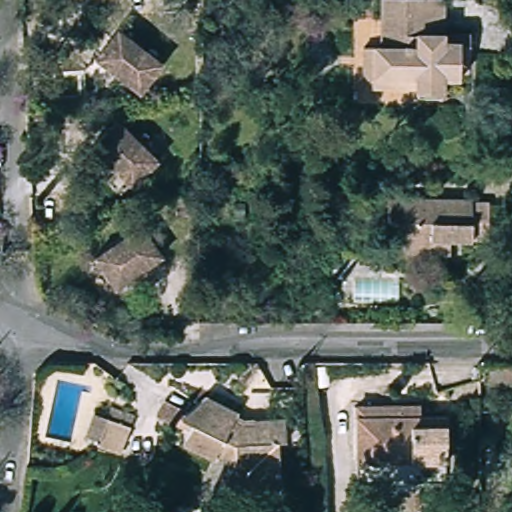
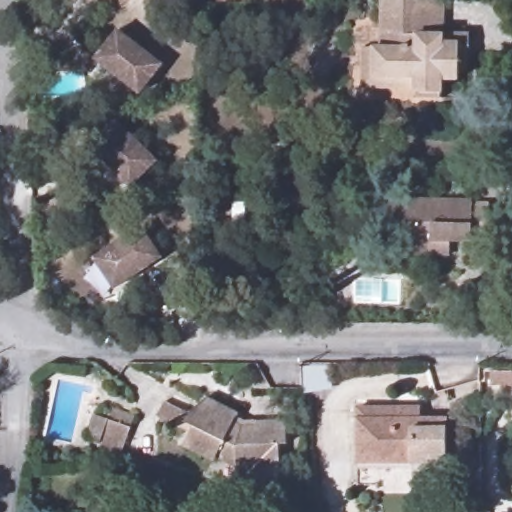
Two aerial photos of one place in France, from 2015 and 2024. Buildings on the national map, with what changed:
unchanged [(418,94),(365,91),(368,46),(379,47),(387,47),(389,0),(448,0),(448,33),(461,33),(475,34),(475,53),(475,70),(462,70),(462,80),(445,80),(444,94),(443,103),(417,101),(418,94)]
unchanged [(85,69),(117,28),(162,63),(138,93),(122,80),(113,91),(85,69)]
unchanged [(85,151),(122,115),(162,155),(124,191),(85,151)]
unchanged [(391,254),(392,243),(392,220),(380,220),(380,210),(365,209),(367,200),(380,200),(477,202),(477,236),(442,236),(442,254),(391,254)]
unchanged [(182,230),(180,213),(195,211),(198,228),(182,230)]
unchanged [(92,250),(140,217),(170,260),(110,300),(82,257),(92,250)]
unchanged [(512,384),(512,399),(490,399),(491,383),(512,384)]
unchanged [(440,471),(351,470),(352,392),(400,393),(415,393),(415,406),(441,405),(440,471)]
unchanged [(233,419),(228,432),(238,436),(252,435),(251,430),(280,427),(282,450),(274,451),(278,497),(251,500),(248,475),(235,476),(233,454),(221,449),(212,469),(179,455),(189,431),(180,427),(200,405),(233,419)]
unchanged [(107,423),(112,407),(135,415),(120,458),(97,451),(98,446),(84,440),(93,418),(107,423)]
unchanged [(163,413),(182,422),(180,427),(175,438),(156,429),(163,413)]

